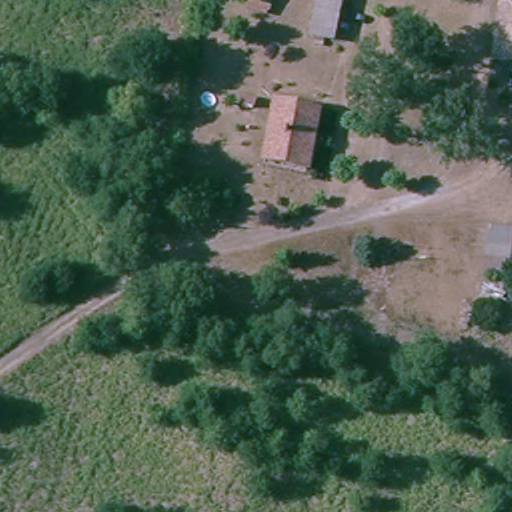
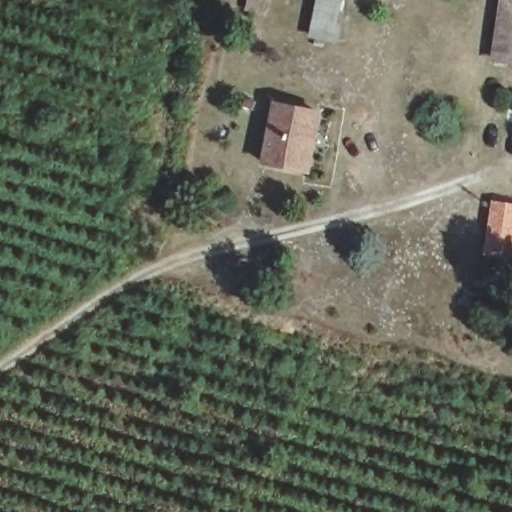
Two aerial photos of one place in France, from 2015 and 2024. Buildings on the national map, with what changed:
unchanged [(347,46),(308,44),(311,0),(348,0),(347,46)]
unchanged [(504,0),(512,0),(512,58),(502,57),(504,0)]
unchanged [(262,157),(272,102),(324,114),(311,170),(262,157)]
new [(492,200),(512,204),(512,260),(484,254),(492,200)]
demolished [(512,231),(512,279),(487,277),(490,229),(512,231)]

